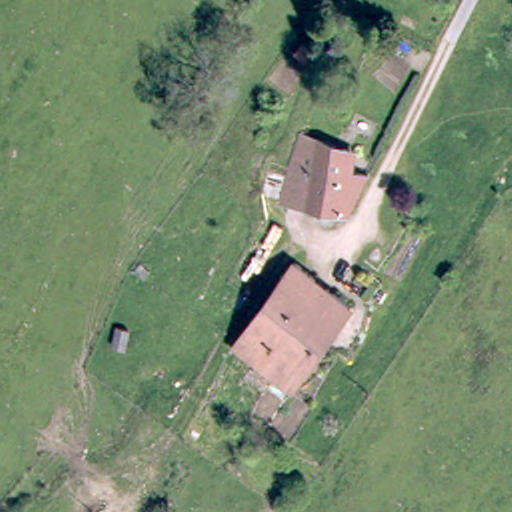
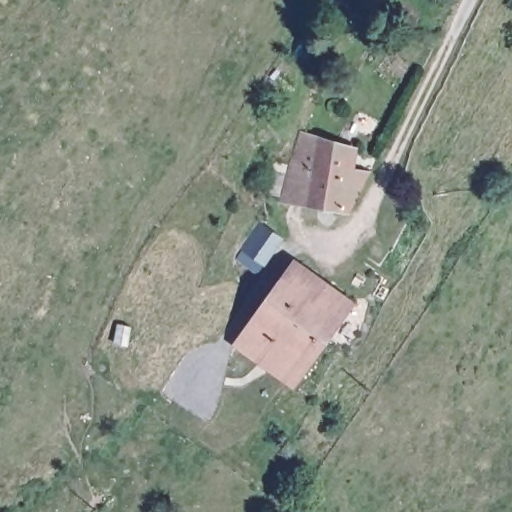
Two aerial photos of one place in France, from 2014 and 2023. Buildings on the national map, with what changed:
unchanged [(345,175),(342,197),(332,196),(330,206),(289,203),(292,157),(293,136),(325,139),(322,159),(346,161),(345,175)]
unchanged [(293,260),(347,296),(290,381),(286,379),(233,342),(293,260)]

